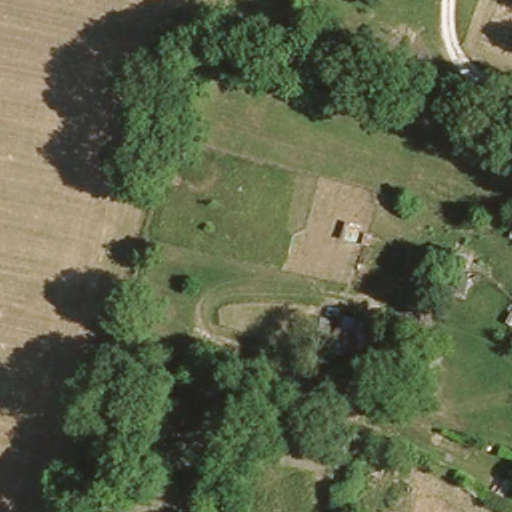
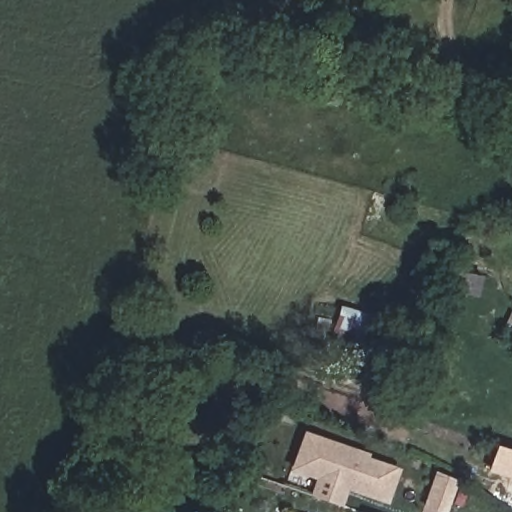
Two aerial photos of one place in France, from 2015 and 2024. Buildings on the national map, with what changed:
new [(363,453),(367,455),(366,458),(398,470),(388,500),(343,484),(340,492),(345,494),(341,505),(314,495),(320,477),(300,470),(312,436),(363,453)]
new [(512,467),(502,464),(509,441),(512,441),(512,467)]
new [(447,512),(428,506),(439,472),(458,479),(447,512)]

